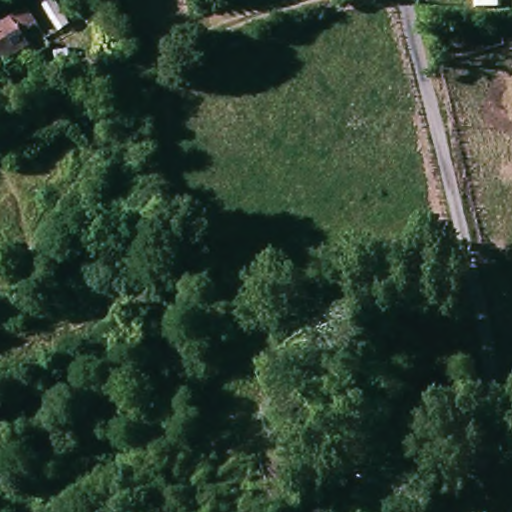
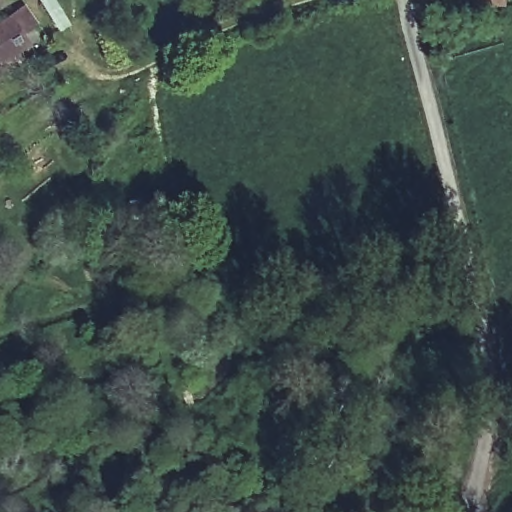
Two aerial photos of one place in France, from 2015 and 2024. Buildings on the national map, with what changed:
unchanged [(18,37),(0,50),(0,17),(2,15),(18,37)]

